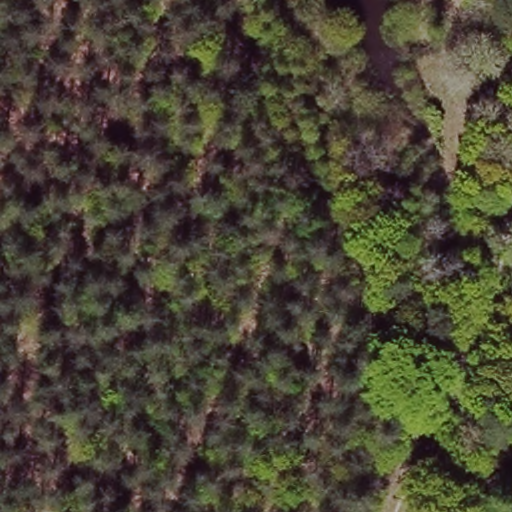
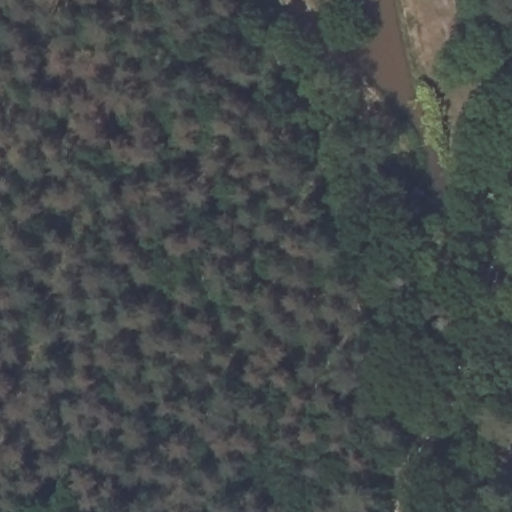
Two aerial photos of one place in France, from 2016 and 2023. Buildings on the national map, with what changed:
[]

